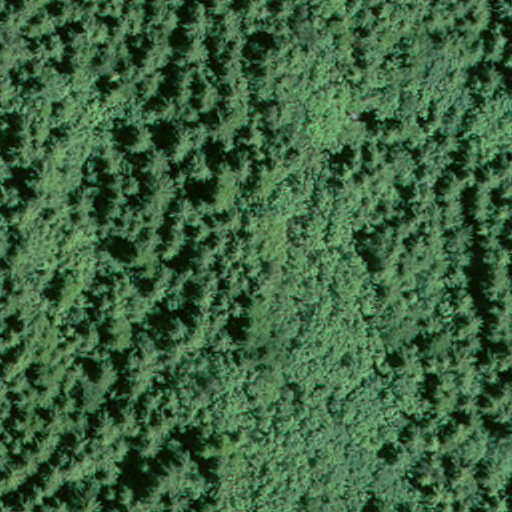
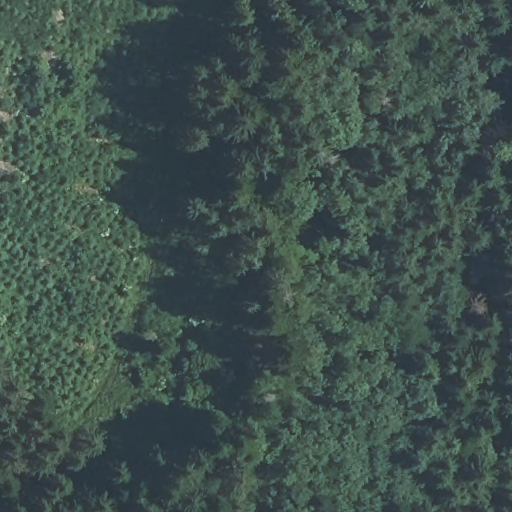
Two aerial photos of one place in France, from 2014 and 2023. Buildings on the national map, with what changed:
[]

